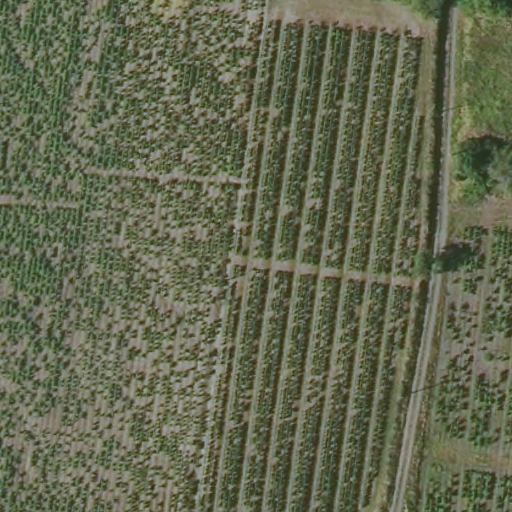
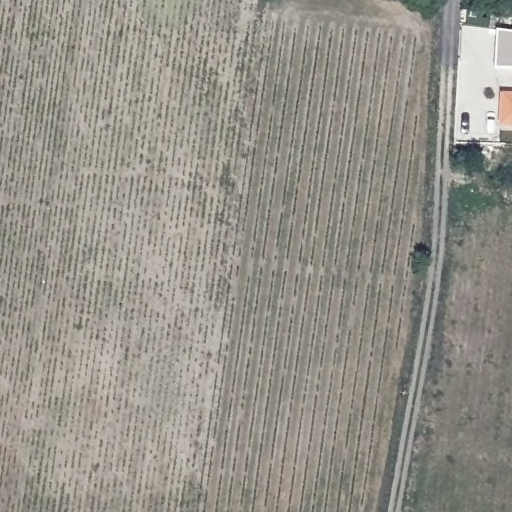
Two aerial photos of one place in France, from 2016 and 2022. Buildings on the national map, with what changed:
new [(497,32),(512,34),(512,69),(495,70),(497,32)]
new [(500,94),(512,94),(512,128),(498,127),(500,94)]

